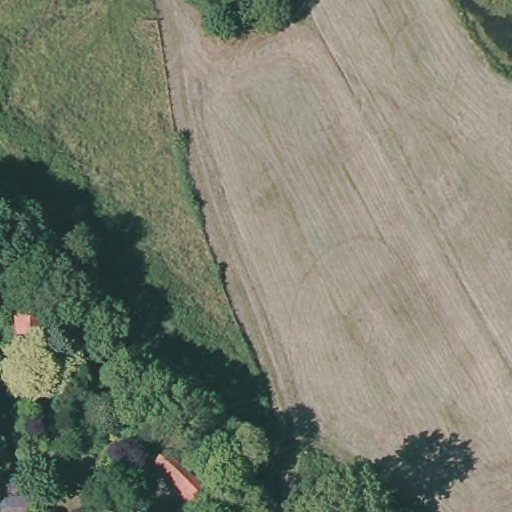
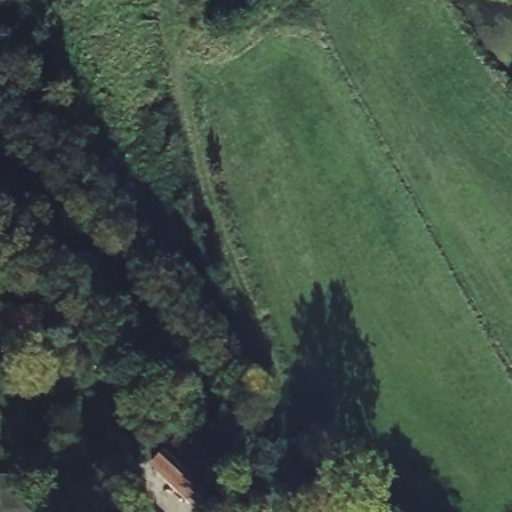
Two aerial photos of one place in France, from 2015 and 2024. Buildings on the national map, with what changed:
unchanged [(17,321),(41,319),(42,347),(19,348),(17,321)]
unchanged [(167,443),(182,457),(200,474),(193,512),(187,512),(142,469),(167,443)]

